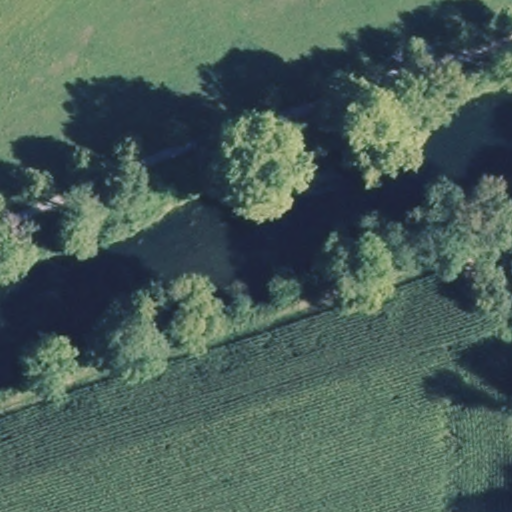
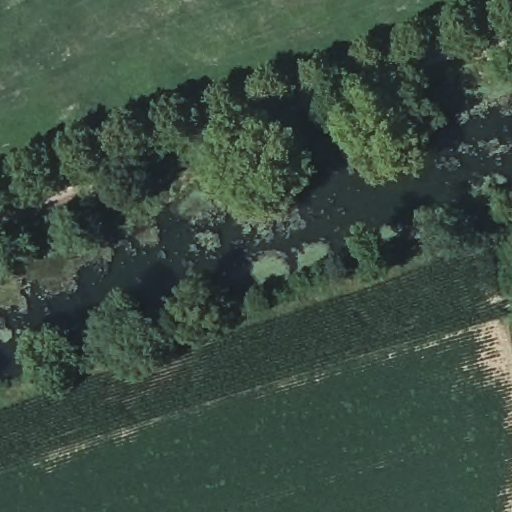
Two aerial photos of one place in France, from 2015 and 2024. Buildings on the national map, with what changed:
[]

